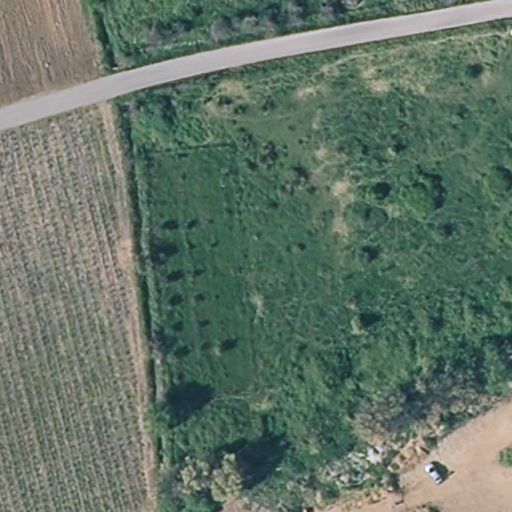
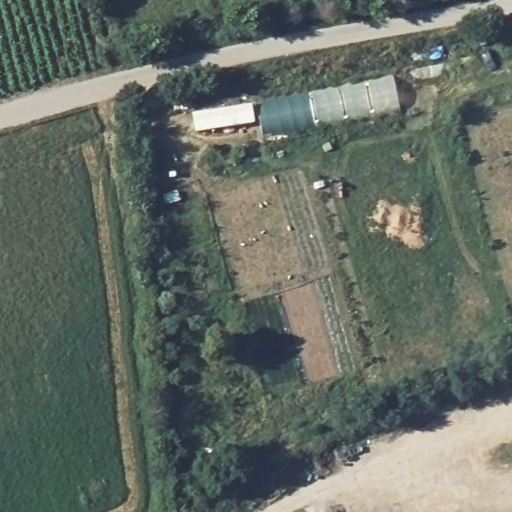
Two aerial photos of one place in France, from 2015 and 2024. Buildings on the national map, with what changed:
new [(261,132),(256,102),(294,95),(392,76),(399,105),(261,132)]

